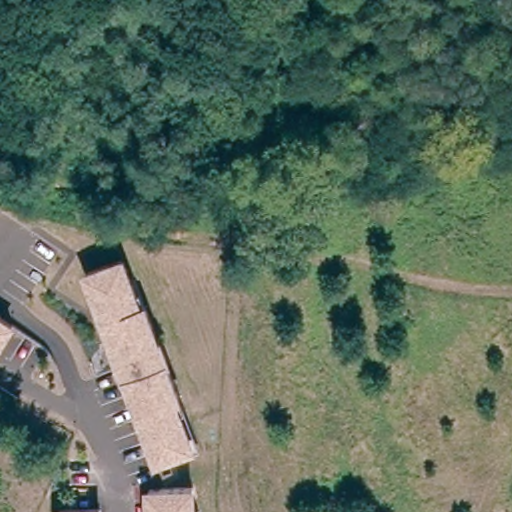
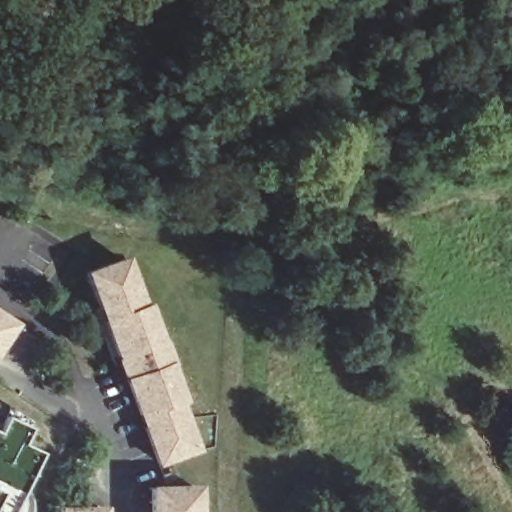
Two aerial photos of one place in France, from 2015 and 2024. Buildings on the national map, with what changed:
unchanged [(125,255),(144,302),(149,300),(173,365),(170,367),(184,402),(180,405),(198,449),(154,466),(81,272),(125,255)]
unchanged [(0,350),(0,311),(18,322),(0,350)]
new [(29,425),(21,442),(45,454),(28,491),(33,494),(35,500),(36,510),(36,512),(0,512),(0,421),(4,412),(29,425)]
unchanged [(146,484),(198,481),(198,512),(146,512),(146,484)]
unchanged [(55,504),(105,504),(105,512),(56,512),(55,504)]

